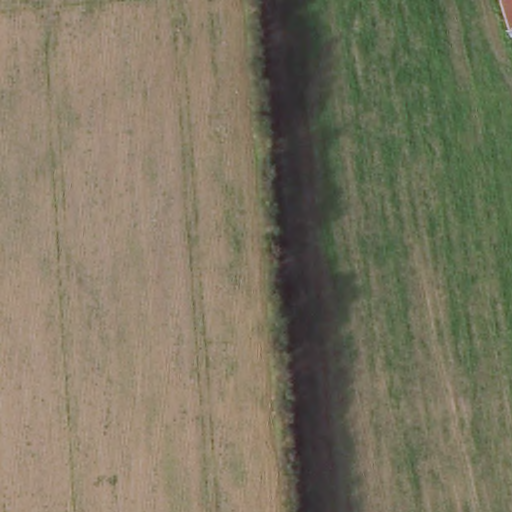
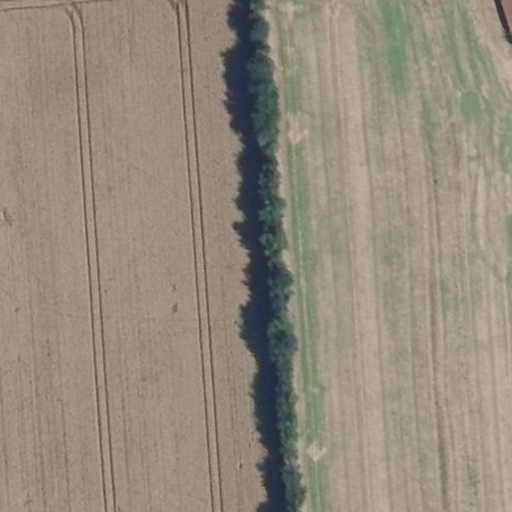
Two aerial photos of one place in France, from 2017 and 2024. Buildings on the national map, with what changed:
unchanged [(509,26),(502,3),(510,0),(512,0),(512,31),(509,26)]

